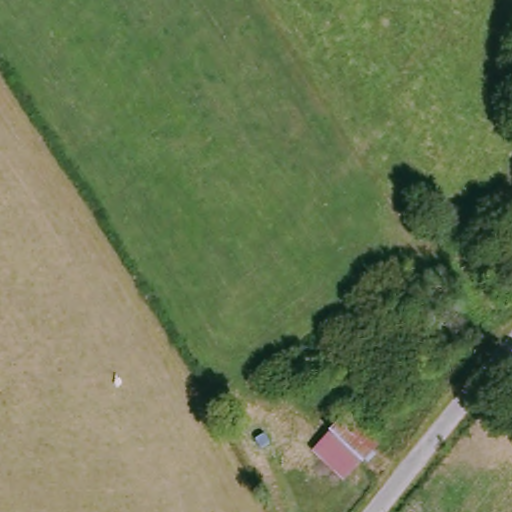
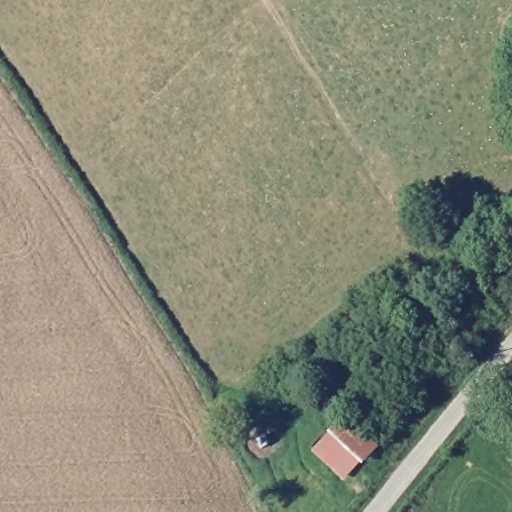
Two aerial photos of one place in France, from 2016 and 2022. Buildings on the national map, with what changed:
unchanged [(350,416),(379,445),(347,477),(319,447),(350,416)]

